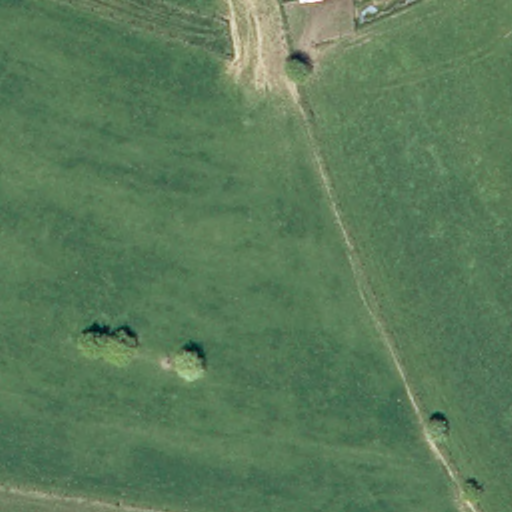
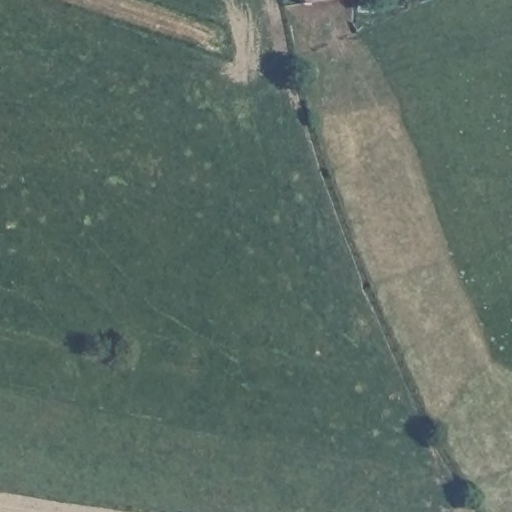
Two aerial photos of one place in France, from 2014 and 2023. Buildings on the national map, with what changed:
unchanged [(318,0),(299,2),(299,0),(318,0)]

